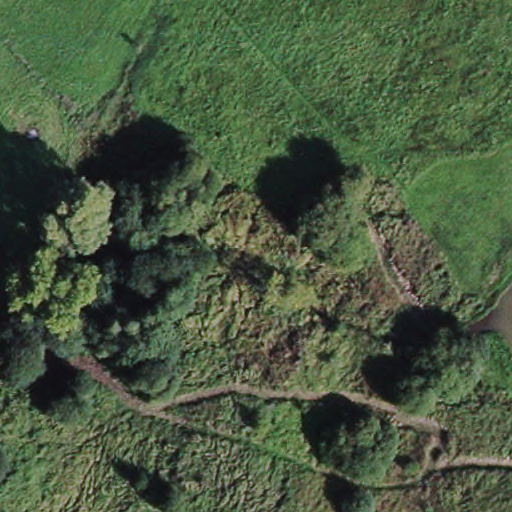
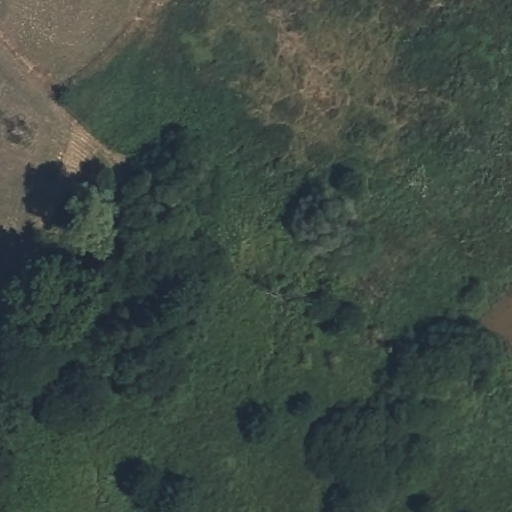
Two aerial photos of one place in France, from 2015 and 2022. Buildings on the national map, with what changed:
unchanged [(95,163),(109,171),(105,182),(91,176),(95,163)]

